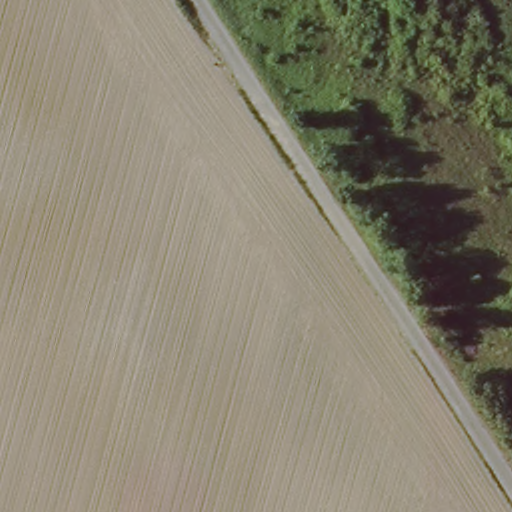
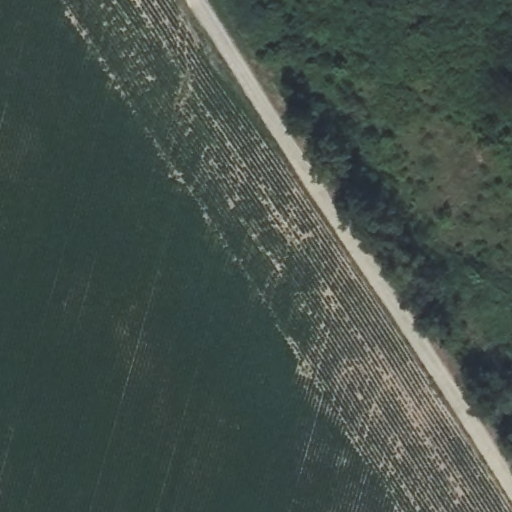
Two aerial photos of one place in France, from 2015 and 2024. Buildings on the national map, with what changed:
[]

